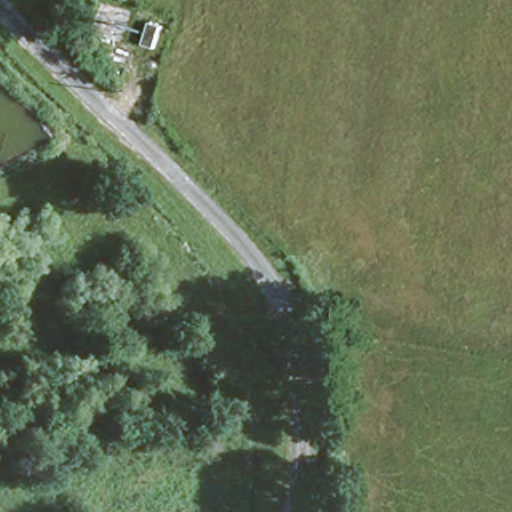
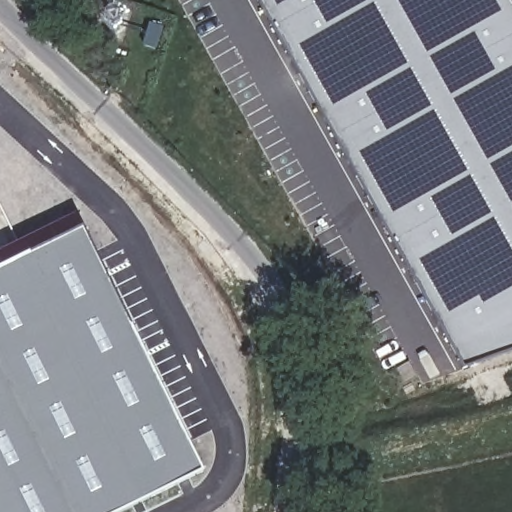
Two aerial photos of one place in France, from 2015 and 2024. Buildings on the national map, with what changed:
new [(512,2),(512,351),(465,368),(259,0),(511,0),(512,2)]
unchanged [(156,16),(167,18),(160,41),(149,38),(156,16)]
new [(84,227),(204,471),(120,512),(0,512),(0,249),(76,212),(84,227)]

